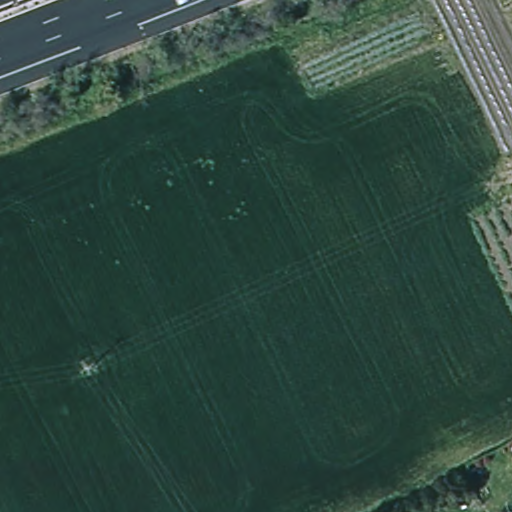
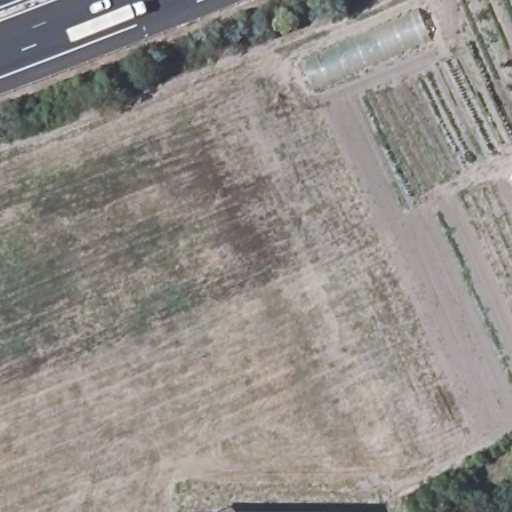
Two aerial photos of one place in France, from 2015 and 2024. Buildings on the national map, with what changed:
new [(418,10),(431,37),(316,88),(302,59),(418,10)]

